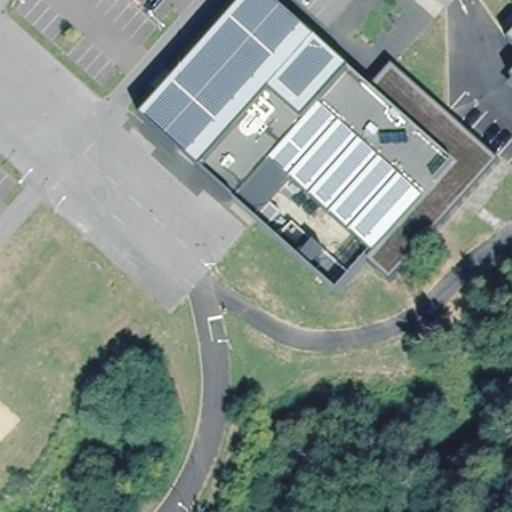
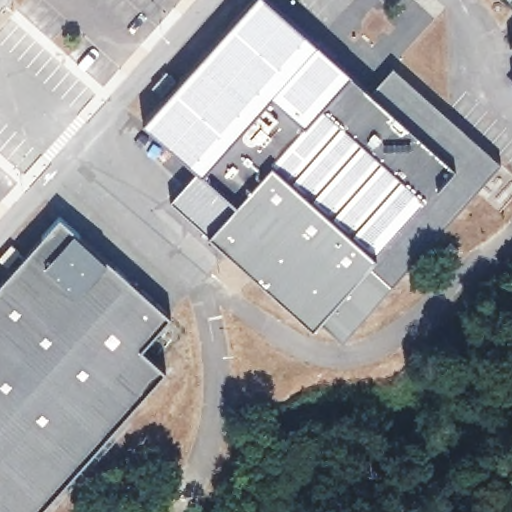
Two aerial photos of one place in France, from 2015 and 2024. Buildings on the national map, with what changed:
unchanged [(234,201),(141,118),(247,0),(271,0),(317,40),(324,47),(334,55),(357,76),(370,87),(391,63),(411,81),(500,160),(390,282),(366,260),(365,259),(371,252),(290,179),(270,160),(234,201)]
unchanged [(512,41),(512,42),(511,42),(512,41)]
unchanged [(175,77),(160,92),(151,83),(165,68),(175,77)]
unchanged [(512,85),(512,92),(508,88),(512,85)]
new [(343,337),(320,315),(312,324),(209,231),(170,199),(197,168),(234,201),(270,160),(290,179),(371,252),(365,259),(366,260),(390,282),(343,337)]
demolished [(270,202),(280,212),(265,229),(255,219),(270,202)]
new [(2,280),(60,215),(166,312),(136,345),(161,368),(33,512),(0,512),(0,278),(2,280)]
demolished [(352,281),(337,298),(277,244),(291,227),(352,281)]

